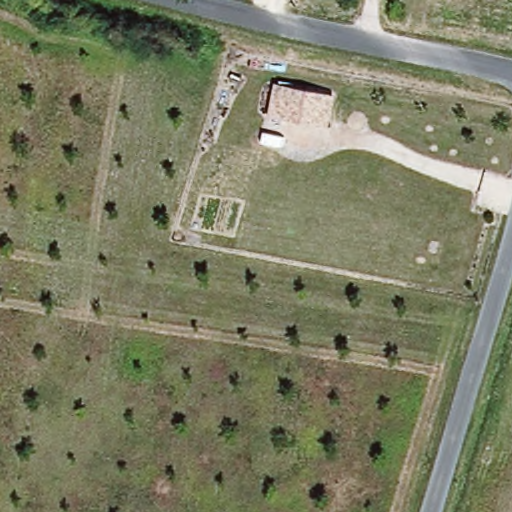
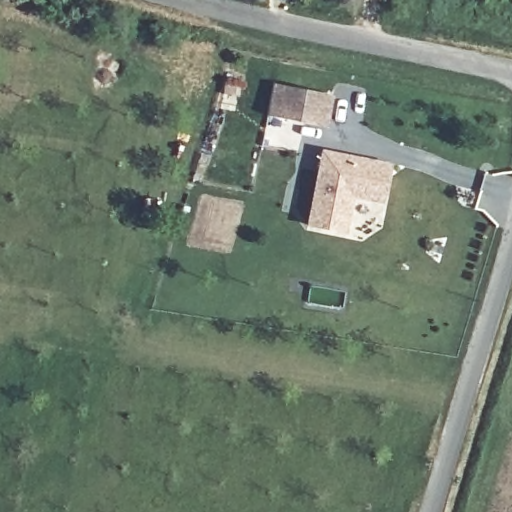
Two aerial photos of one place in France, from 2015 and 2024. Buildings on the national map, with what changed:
unchanged [(272,81),(332,92),(328,126),(267,117),(272,81)]
new [(391,163),(382,205),(353,198),(345,235),(303,227),(318,149),(391,163)]

